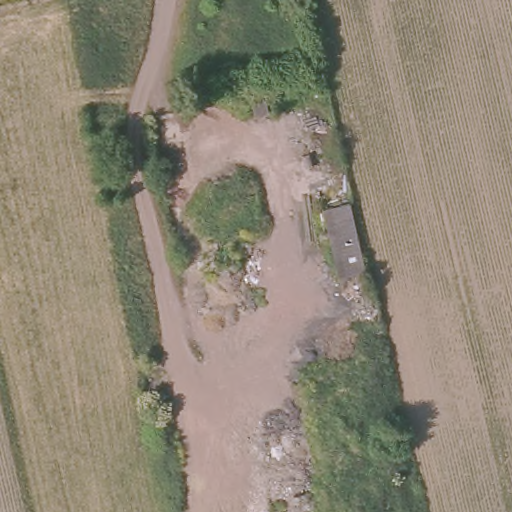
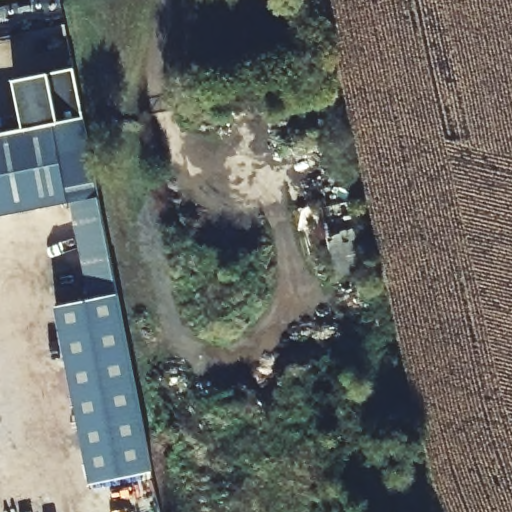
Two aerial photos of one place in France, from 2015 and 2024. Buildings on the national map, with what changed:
new [(19,131),(10,83),(70,71),(95,199),(0,218),(0,134),(19,131)]
unchanged [(370,272),(334,281),(315,209),(356,198),(370,272)]
new [(87,302),(67,205),(95,199),(147,475),(86,487),(51,309),(87,302)]

